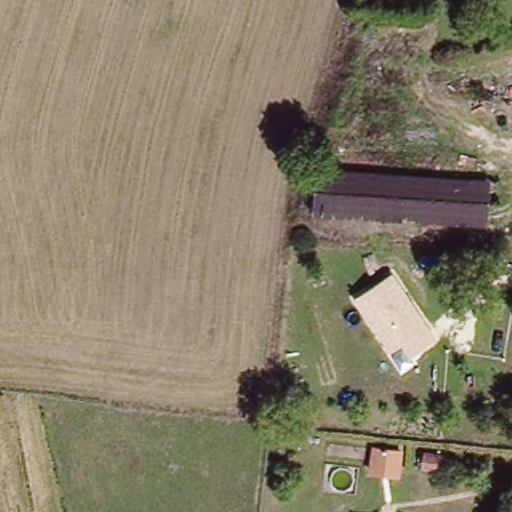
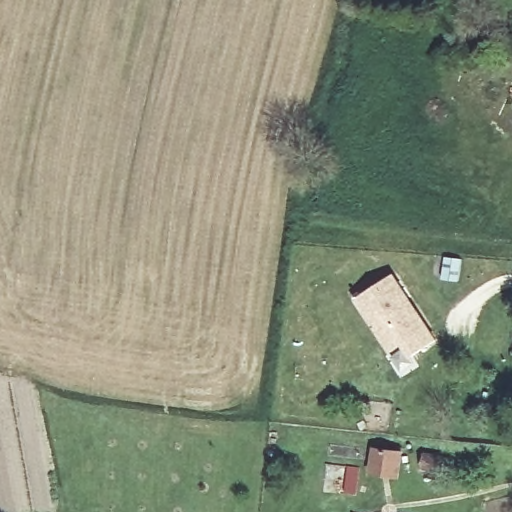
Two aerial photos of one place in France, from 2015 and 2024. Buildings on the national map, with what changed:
demolished [(312,215),(315,169),(487,179),(485,225),(312,215)]
unchanged [(394,271),(437,337),(411,356),(402,343),(390,351),(355,297),(394,271)]
unchanged [(448,454),(444,475),(418,471),(420,451),(448,454)]

